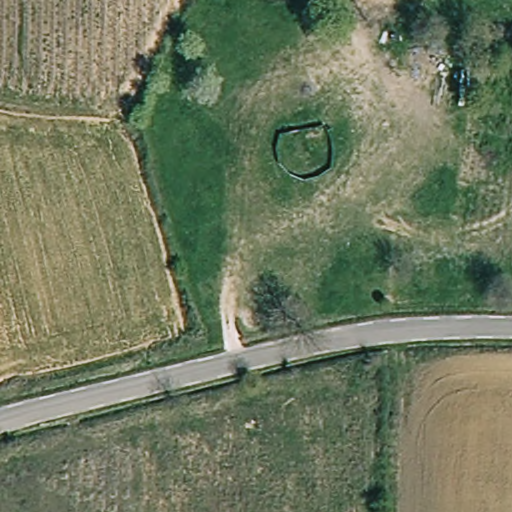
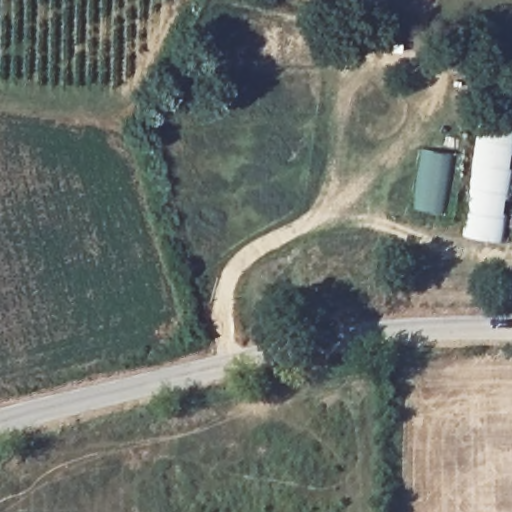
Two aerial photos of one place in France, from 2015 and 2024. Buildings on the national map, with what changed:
new [(502,242),(462,236),(480,114),(512,118),(512,153),(509,153),(507,169),(512,169),(512,172),(508,199),(503,198),(500,213),(507,214),(502,242)]
new [(455,153),(447,213),(412,211),(422,148),(455,153)]

